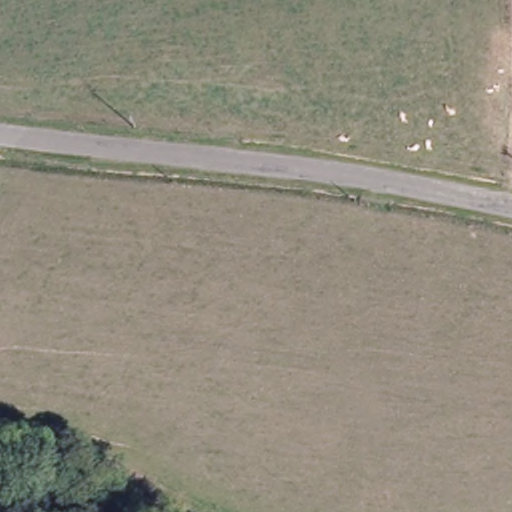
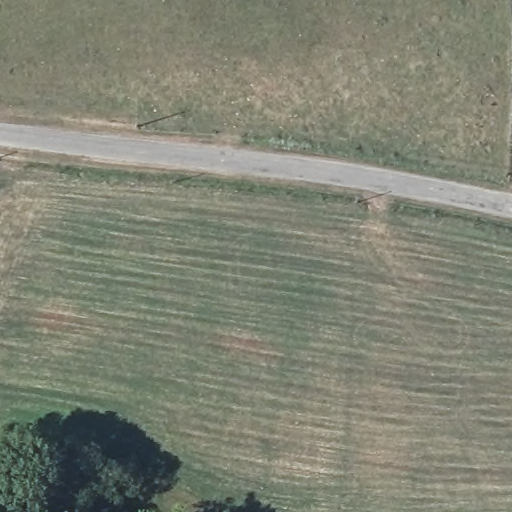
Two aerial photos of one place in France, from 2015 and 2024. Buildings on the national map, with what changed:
[]

